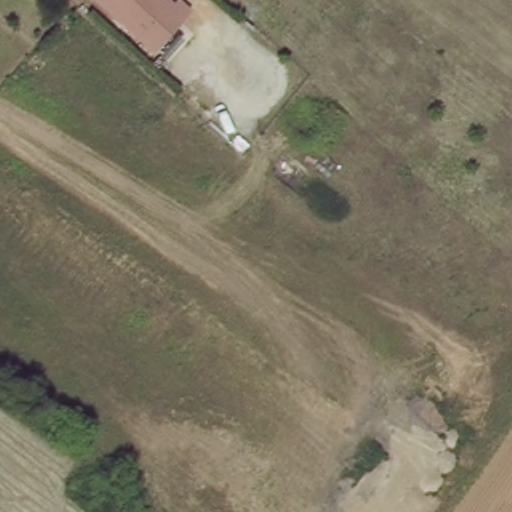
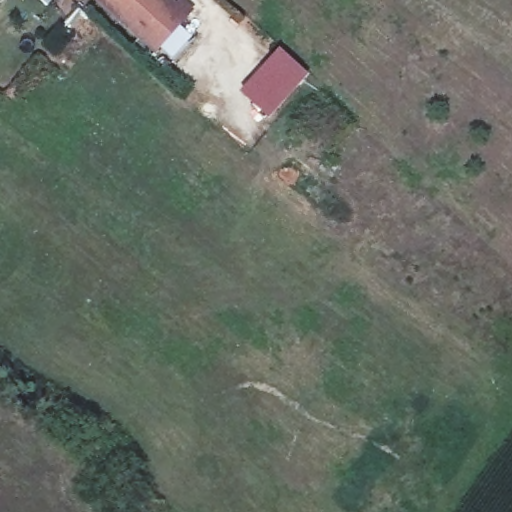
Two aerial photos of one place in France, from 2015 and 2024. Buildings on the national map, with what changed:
unchanged [(190,10),(160,44),(110,0),(178,0),(190,10)]
new [(316,79),(280,126),(245,97),(281,51),(316,79)]

